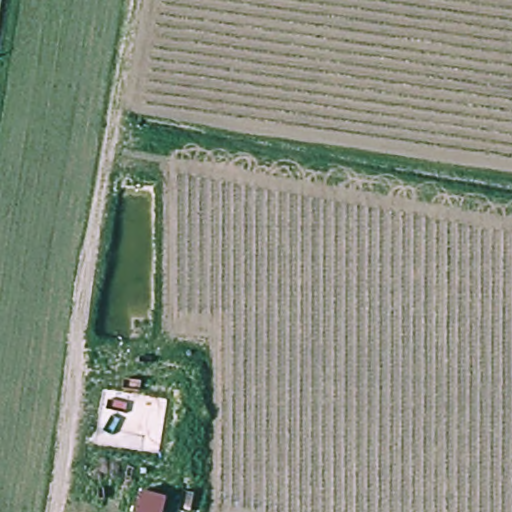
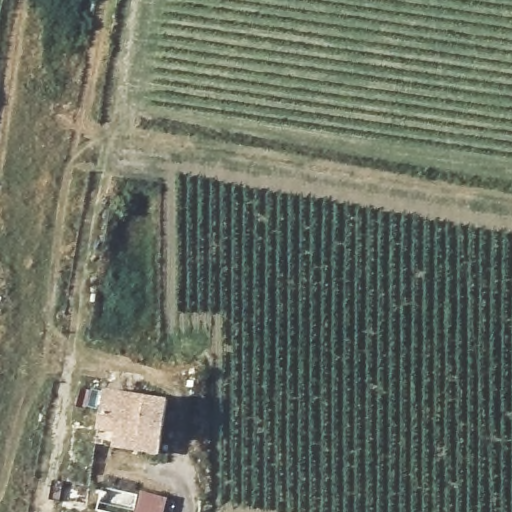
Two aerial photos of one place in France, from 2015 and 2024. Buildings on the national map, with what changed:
new [(114,433),(98,430),(104,389),(166,399),(157,454),(112,447),(114,433)]

